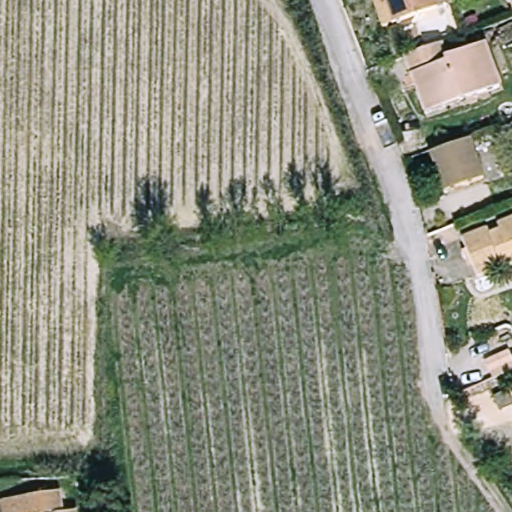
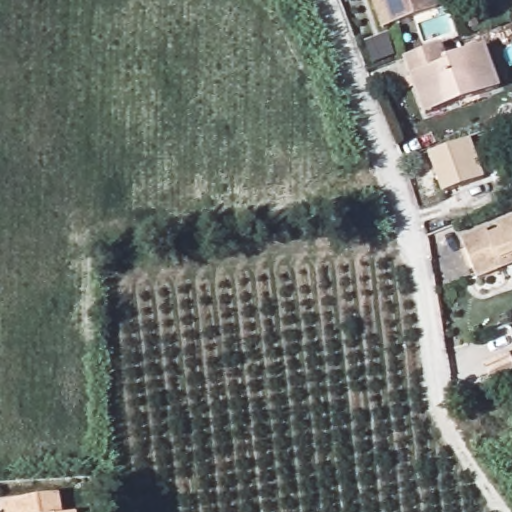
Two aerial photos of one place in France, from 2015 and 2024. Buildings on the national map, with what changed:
unchanged [(446,9),(401,21),(391,24),(384,0),(444,0),(446,9)]
unchanged [(464,4),(446,9),(444,0),(463,0),(464,4)]
unchanged [(426,106),(412,56),(447,46),(452,62),(494,50),(505,92),(465,103),(429,114),(426,106)]
unchanged [(474,139),(487,176),(448,189),(435,152),(474,139)]
unchanged [(483,280),(469,241),(496,232),(498,239),(510,235),(507,227),(512,225),(512,269),(510,270),(483,280)]
unchanged [(26,500),(62,495),(64,512),(6,512),(5,502),(26,500)]

